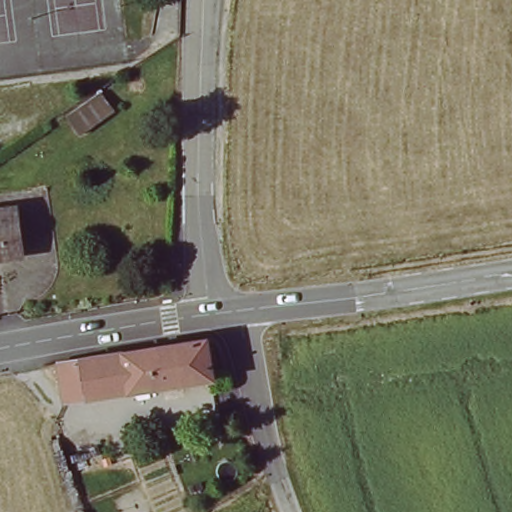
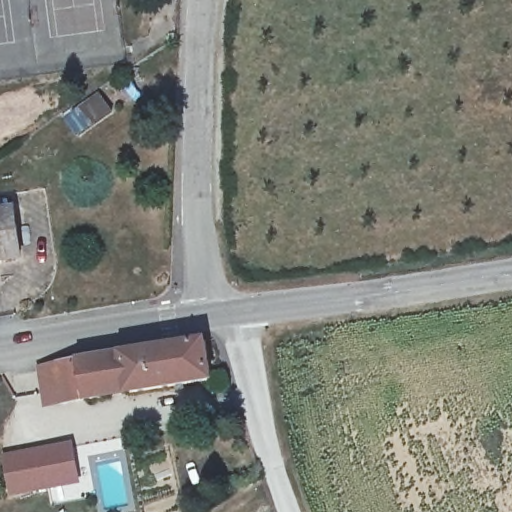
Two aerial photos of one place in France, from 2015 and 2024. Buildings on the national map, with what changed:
unchanged [(20,267),(2,268),(1,261),(0,261),(0,203),(13,202),(20,267)]
unchanged [(58,359),(80,356),(134,348),(208,339),(214,378),(85,396),(64,399),(58,359)]
new [(70,443),(77,485),(7,497),(0,456),(70,443)]

